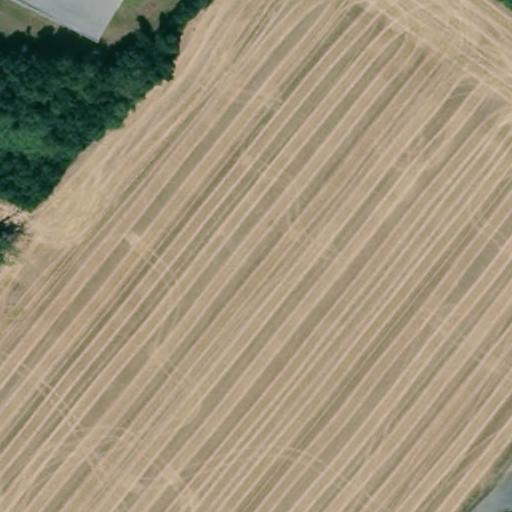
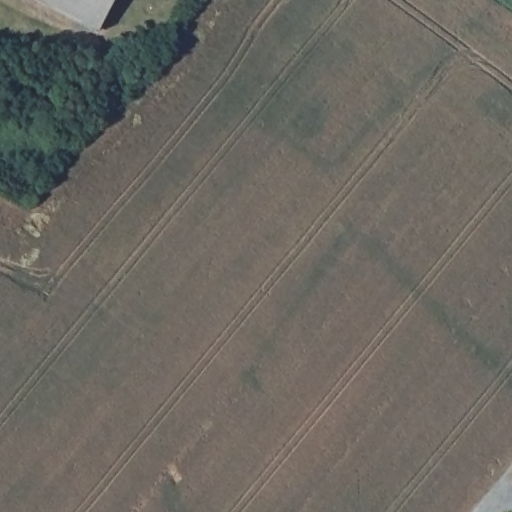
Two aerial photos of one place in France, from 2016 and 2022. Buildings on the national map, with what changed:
unchanged [(35,0),(112,0),(94,33),(35,0)]

